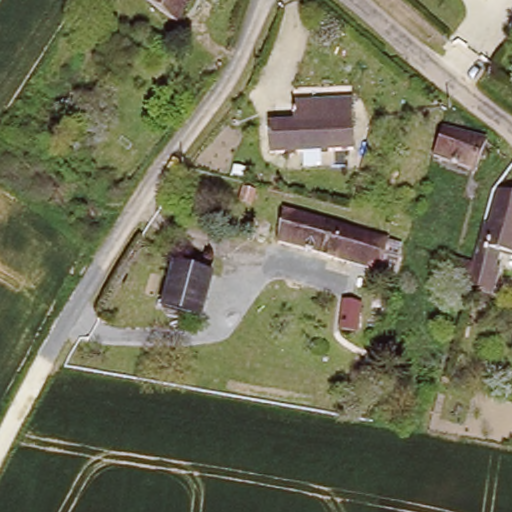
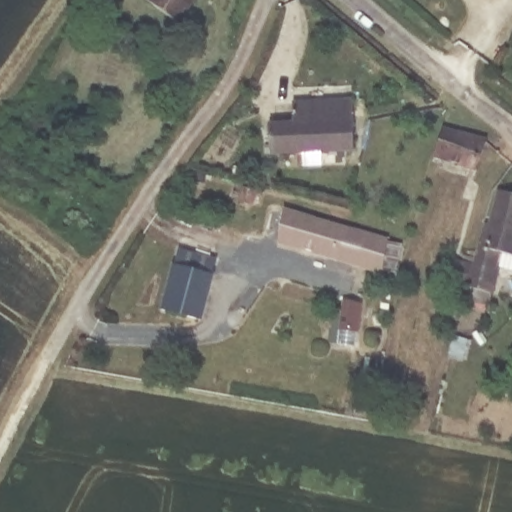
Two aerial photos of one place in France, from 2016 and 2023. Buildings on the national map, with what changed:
unchanged [(146,0),(194,0),(175,30),(140,9),(146,0)]
unchanged [(305,106),(355,103),(356,116),(355,116),(357,146),(277,152),(275,121),(305,119),(305,106)]
unchanged [(442,121),(491,147),(477,172),(433,147),(442,121)]
unchanged [(485,241),(492,242),(503,190),(512,192),(512,252),(501,249),(498,266),(503,266),(498,293),(473,288),(476,276),(460,274),(460,266),(462,252),(482,255),(485,241)]
unchanged [(289,212),(327,222),(328,215),(362,224),(360,230),(392,239),(385,271),(302,249),(281,243),(289,212)]
unchanged [(197,322),(163,311),(176,271),(180,272),(183,261),(205,268),(202,280),(209,283),(197,322)]
unchanged [(335,304),(342,305),(342,298),(354,298),(352,332),(335,331),(335,304)]

